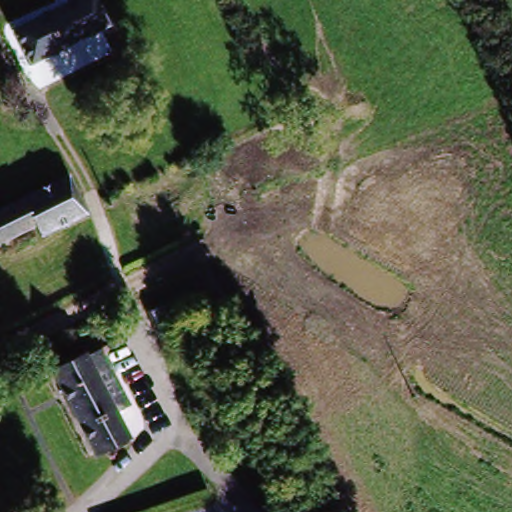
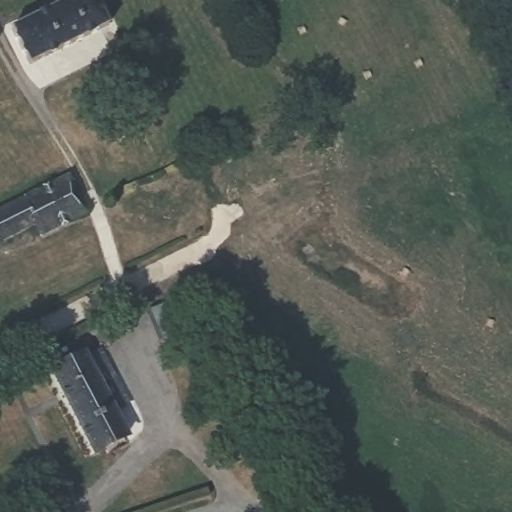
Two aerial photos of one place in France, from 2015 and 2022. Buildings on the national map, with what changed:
unchanged [(67,0),(95,0),(110,30),(27,71),(5,31),(67,0)]
unchanged [(5,247),(4,246),(0,248),(0,212),(66,178),(89,217),(31,247),(11,257),(5,247)]
unchanged [(117,367),(133,401),(115,412),(129,443),(93,461),(50,374),(107,346),(117,367)]

